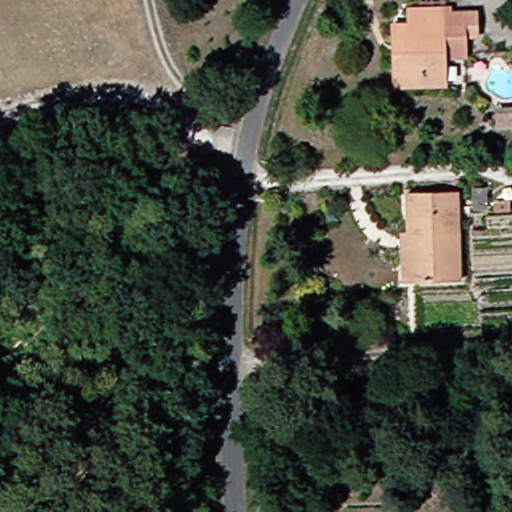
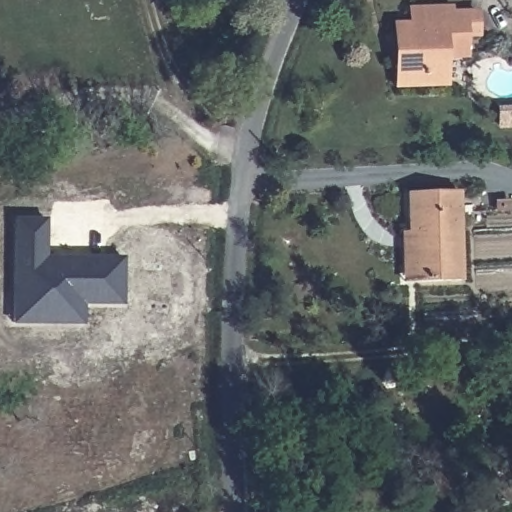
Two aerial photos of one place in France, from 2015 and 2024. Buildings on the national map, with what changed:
unchanged [(385,80),(386,60),(385,20),(398,19),(398,5),(435,4),(435,8),(461,8),(470,8),(470,23),(464,23),(460,23),(461,46),(437,46),(439,81),(385,80)]
unchanged [(512,121),(503,121),(503,107),(512,107),(512,121)]
unchanged [(392,230),(397,230),(396,191),(443,189),(449,275),(408,276),(395,276),(392,230)]
new [(15,217),(49,217),(50,258),(124,259),(122,304),(85,305),(85,324),(15,325),(15,217)]

